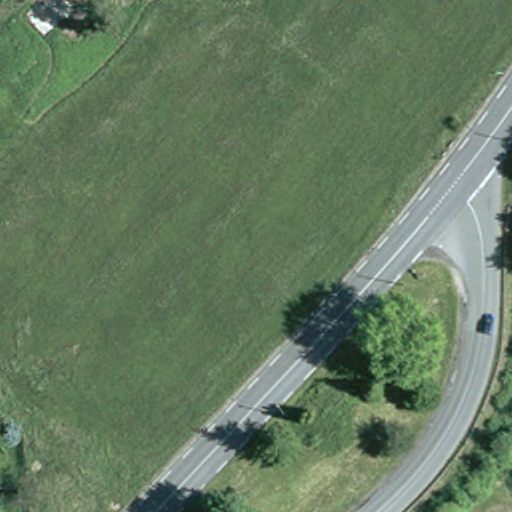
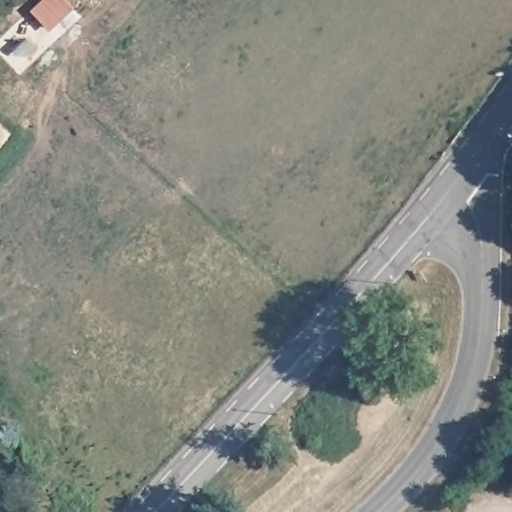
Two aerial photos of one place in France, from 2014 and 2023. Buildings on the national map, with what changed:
demolished [(18,7),(27,0),(88,0),(47,35),(18,7)]
new [(44,0),(69,0),(77,8),(52,32),(32,11),(44,0)]

